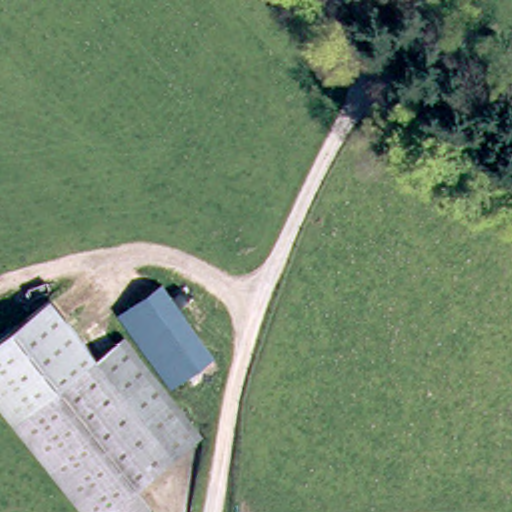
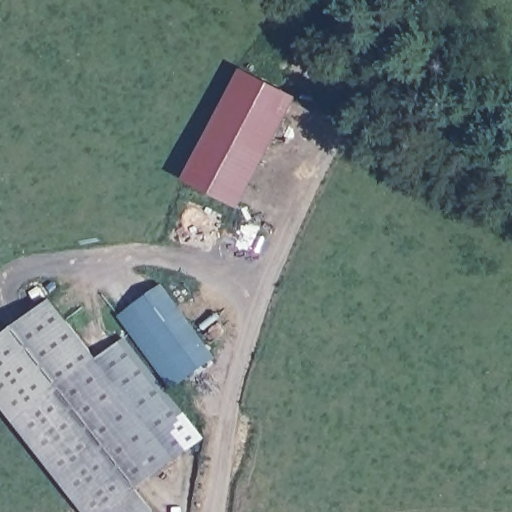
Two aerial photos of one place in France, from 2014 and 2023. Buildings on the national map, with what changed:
new [(185,180),(242,68),(298,96),(241,208),(185,180)]
unchanged [(218,367),(176,398),(123,325),(166,295),(218,367)]
unchanged [(54,309),(101,370),(20,432),(19,431),(0,408),(0,350),(54,309)]
unchanged [(128,348),(205,447),(140,500),(149,512),(81,512),(20,432),(101,370),(128,348)]

